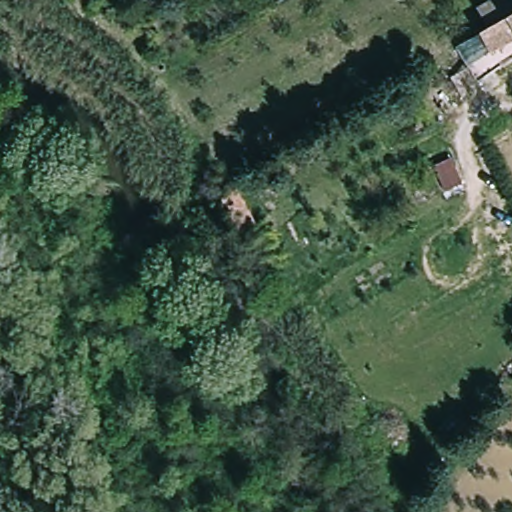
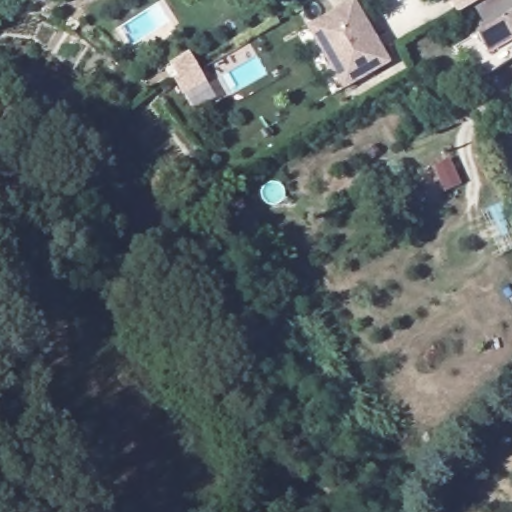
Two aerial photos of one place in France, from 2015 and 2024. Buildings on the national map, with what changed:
new [(308,26),(353,0),(354,0),(388,61),(343,87),(332,69),(318,44),(308,26)]
new [(457,13),(450,0),(483,0),(457,13)]
unchanged [(480,9),(496,0),(512,0),(512,17),(491,28),(480,9)]
unchanged [(481,34),(491,28),(512,17),(512,62),(501,68),(485,77),(465,43),(481,34)]
unchanged [(460,184),(444,192),(432,166),(450,159),(460,184)]
unchanged [(253,222),(238,231),(220,198),(235,189),(253,222)]

